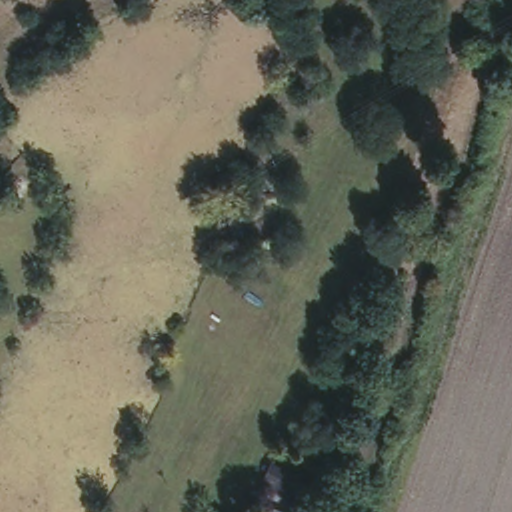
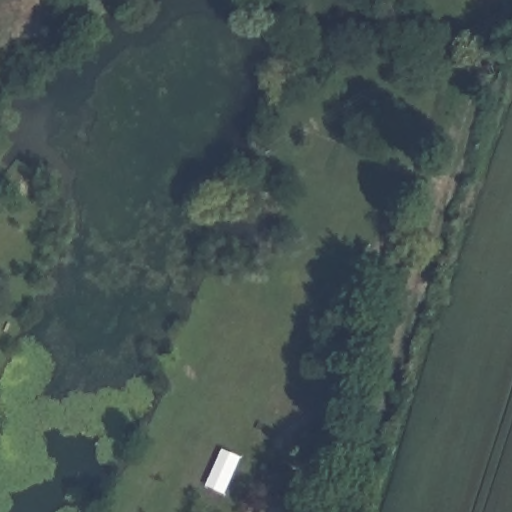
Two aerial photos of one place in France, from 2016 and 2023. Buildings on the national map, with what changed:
unchanged [(273,456),(314,470),(304,498),(259,478),(273,456)]

